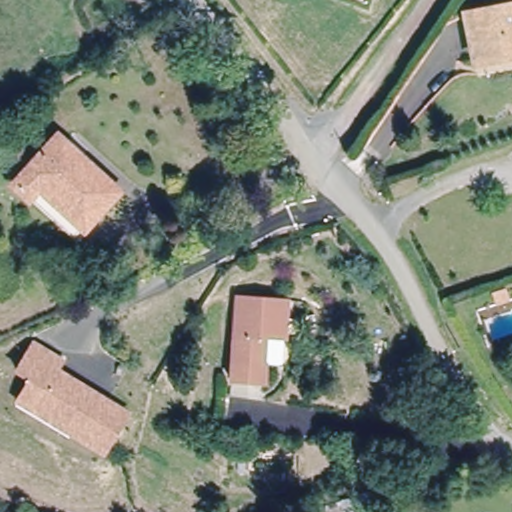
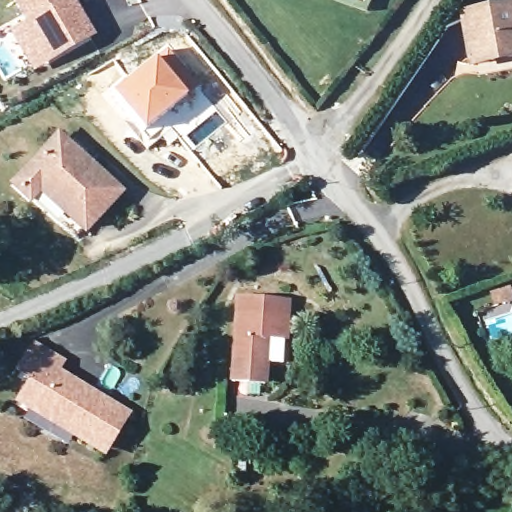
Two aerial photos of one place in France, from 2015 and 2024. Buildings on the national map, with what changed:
new [(95,35),(34,74),(9,31),(26,19),(14,0),(75,0),(95,35)]
unchanged [(493,51),(494,58),(473,62),(464,15),(512,5),(512,54),(507,55),(506,49),(493,51)]
new [(168,46),(200,88),(142,135),(109,94),(168,46)]
new [(200,88),(212,104),(172,131),(177,137),(168,144),(161,135),(149,143),(142,135),(200,88)]
unchanged [(11,184),(52,131),(117,181),(75,234),(11,184)]
unchanged [(505,290),(508,299),(499,302),(496,293),(505,290)]
unchanged [(278,336),(258,335),(255,379),(224,377),(230,295),(280,299),(278,336)]
unchanged [(19,403),(31,380),(16,372),(32,344),(62,360),(56,370),(129,409),(110,445),(110,446),(107,450),(57,423),(19,403)]

